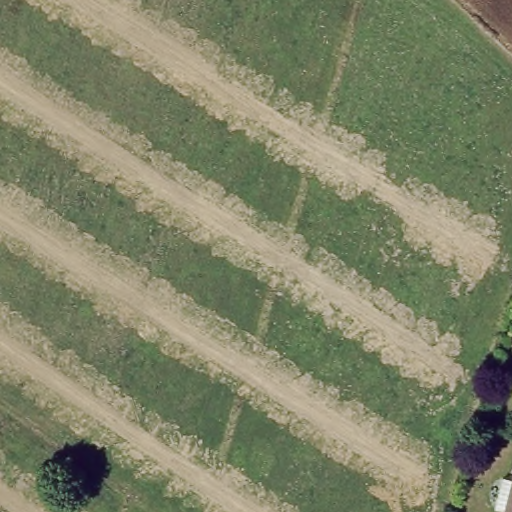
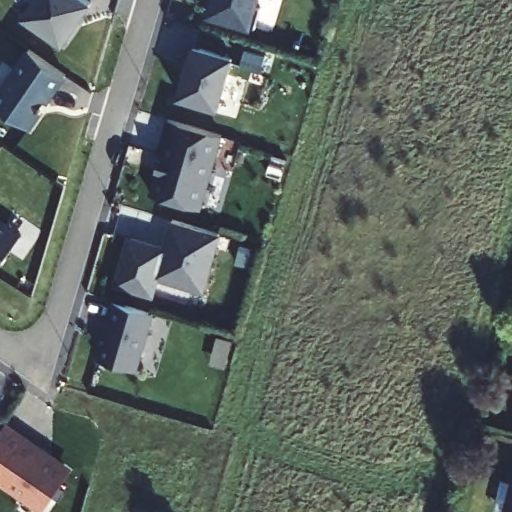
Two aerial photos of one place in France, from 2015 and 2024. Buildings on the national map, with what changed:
new [(64,45),(24,16),(35,0),(94,0),(96,1),(64,45)]
new [(209,15),(213,0),(261,0),(254,27),(209,15)]
new [(236,55),(220,110),(180,97),(196,45),(236,55)]
new [(30,128),(0,109),(0,89),(29,49),(68,75),(30,128)]
new [(222,134),(204,209),(152,194),(163,152),(160,151),(167,118),(222,134)]
new [(0,268),(0,217),(24,234),(0,268)]
new [(164,245),(171,219),(221,232),(206,292),(160,280),(155,297),(115,286),(130,235),(164,245)]
new [(154,311),(140,369),(97,357),(112,300),(154,311)]
new [(0,407),(0,405),(1,405),(0,407)]
new [(45,512),(43,512),(0,484),(0,475),(27,435),(74,466),(45,512)]
unchanged [(502,477),(512,480),(512,512),(505,512),(494,510),(502,477)]

